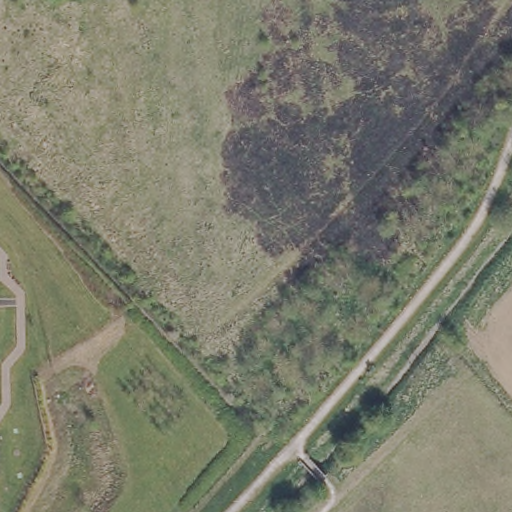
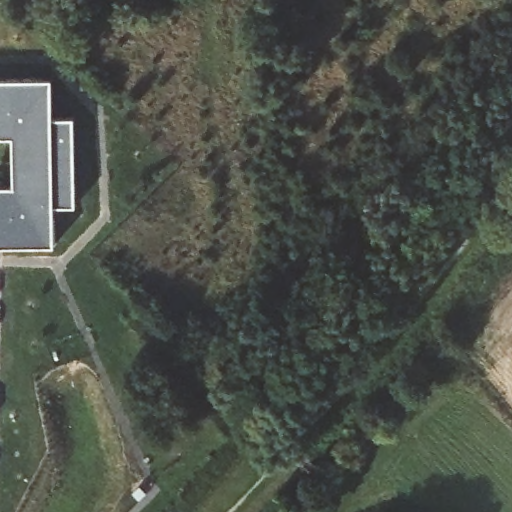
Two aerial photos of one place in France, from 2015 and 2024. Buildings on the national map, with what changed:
new [(52,117),(74,117),(76,204),(54,204),(55,244),(0,245),(0,79),(52,79),(52,117)]

